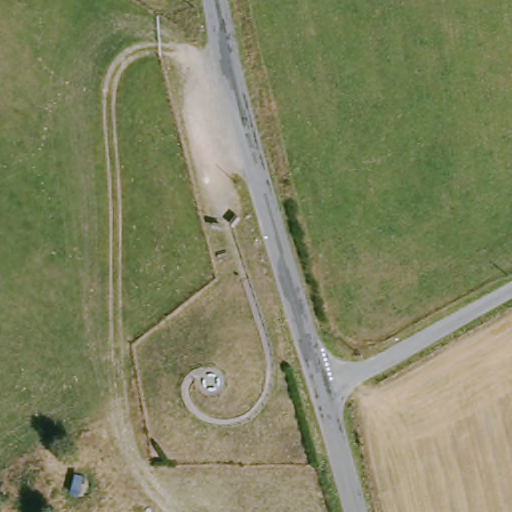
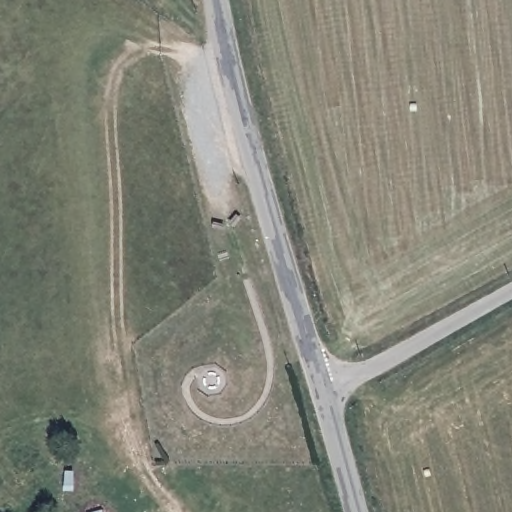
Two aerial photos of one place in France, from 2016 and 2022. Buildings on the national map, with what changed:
[]

